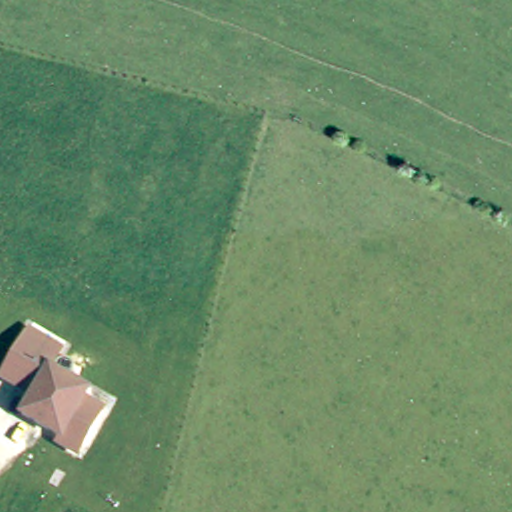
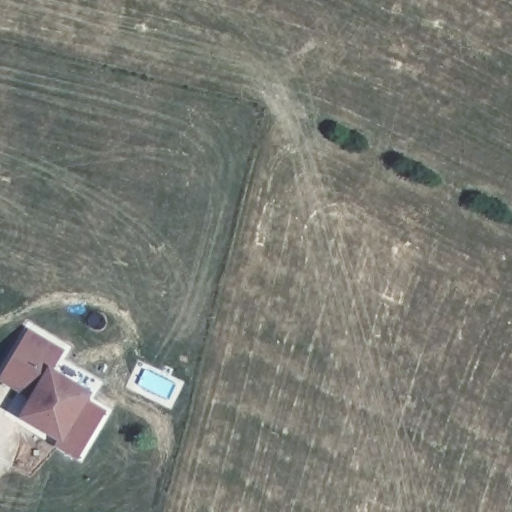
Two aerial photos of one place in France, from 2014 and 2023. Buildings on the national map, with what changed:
unchanged [(57,369),(96,389),(87,401),(108,412),(76,462),(47,446),(50,438),(12,416),(25,395),(0,380),(0,375),(28,328),(67,353),(57,369)]

